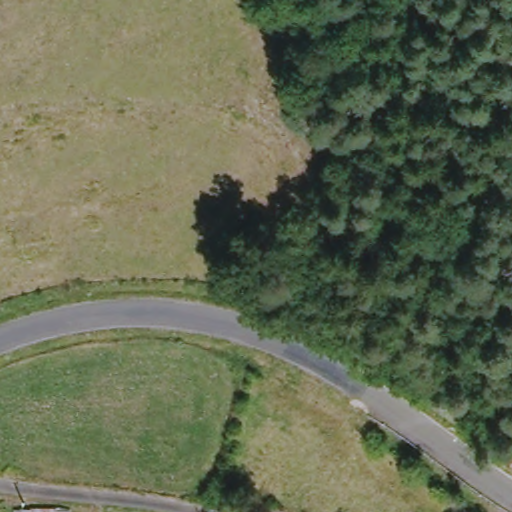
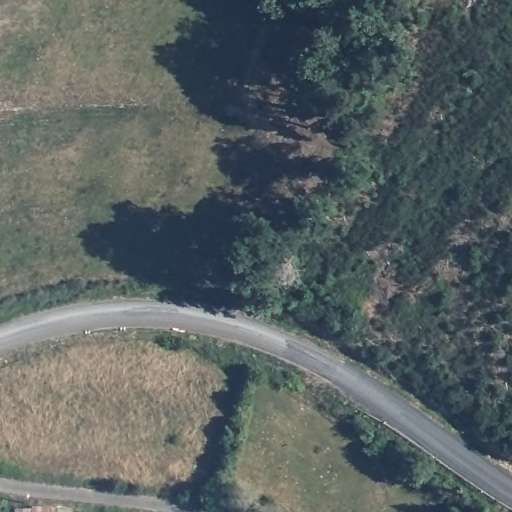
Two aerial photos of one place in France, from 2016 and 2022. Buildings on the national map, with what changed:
unchanged [(32,508),(60,506),(73,505),(73,512),(13,512),(12,507),(32,508)]

